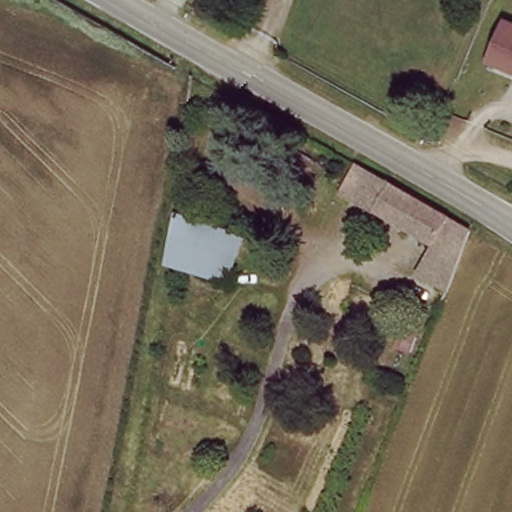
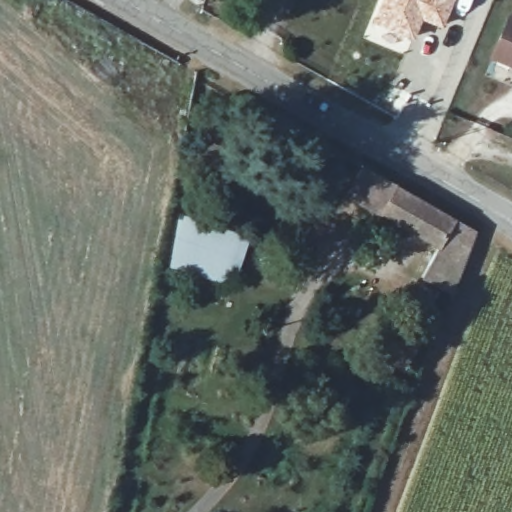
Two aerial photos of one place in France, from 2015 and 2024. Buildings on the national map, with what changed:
new [(378,0),(453,0),(443,28),(423,20),(412,44),(368,23),(378,0)]
unchanged [(494,54),(508,19),(512,20),(512,68),(493,60),(494,54)]
unchanged [(394,187),(479,237),(456,295),(446,288),(438,302),(409,287),(413,278),(425,285),(442,250),(348,196),(362,167),(394,187)]
unchanged [(240,287),(172,271),(183,222),(250,239),(240,287)]

